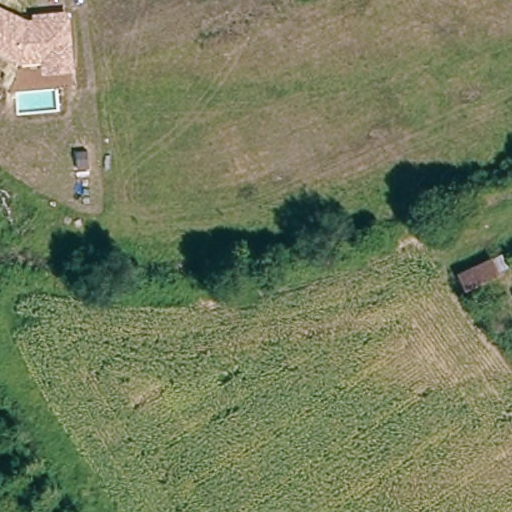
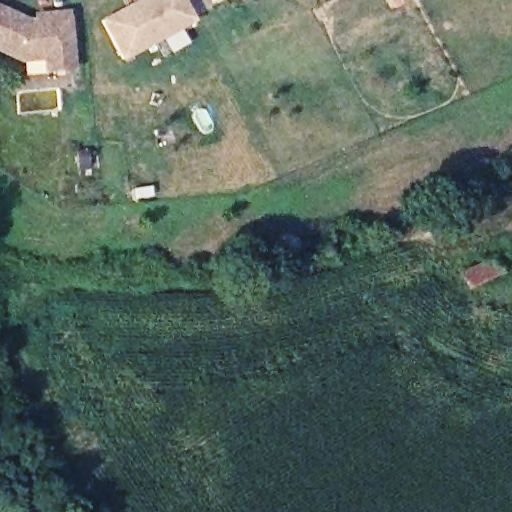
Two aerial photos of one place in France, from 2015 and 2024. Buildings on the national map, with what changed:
new [(143,0),(182,0),(194,22),(121,61),(100,23),(143,0)]
new [(212,2),(211,0),(217,0),(212,2)]
unchanged [(29,18),(32,17),(32,13),(69,11),(74,72),(41,74),(40,63),(19,63),(0,55),(0,6),(29,18)]

